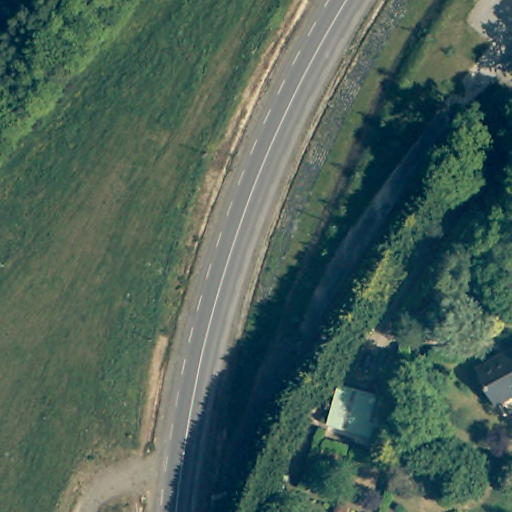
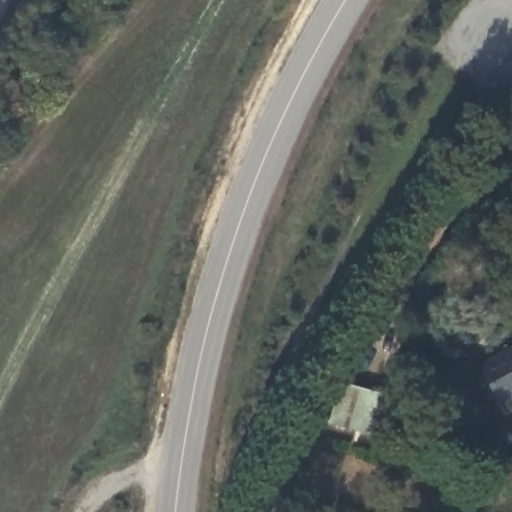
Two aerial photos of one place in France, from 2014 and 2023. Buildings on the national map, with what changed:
unchanged [(477,366),(497,356),(500,361),(512,355),(512,394),(496,402),(477,366)]
unchanged [(406,402),(397,432),(339,415),(349,385),(406,402)]

